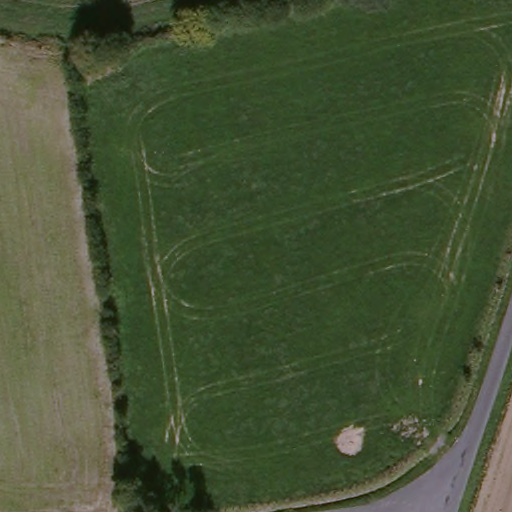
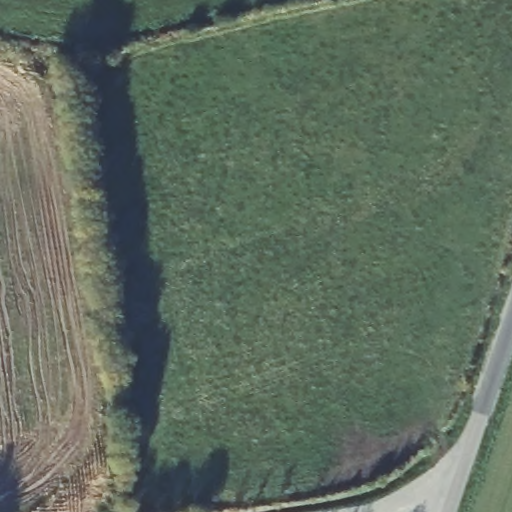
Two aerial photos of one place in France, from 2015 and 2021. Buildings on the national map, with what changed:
[]

